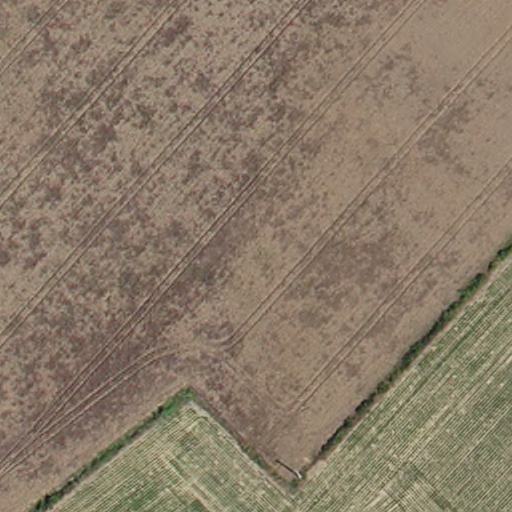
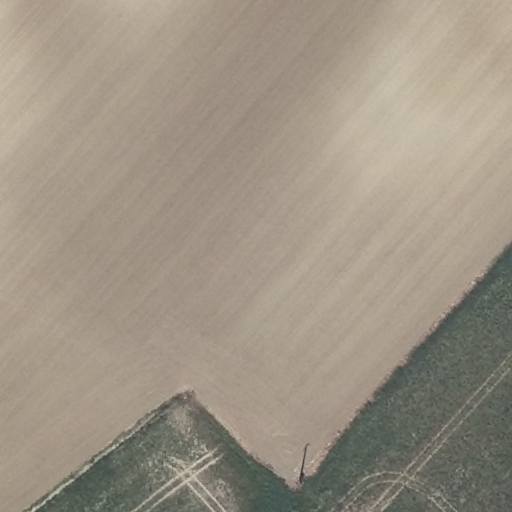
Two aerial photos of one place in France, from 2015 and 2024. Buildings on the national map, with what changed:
[]

